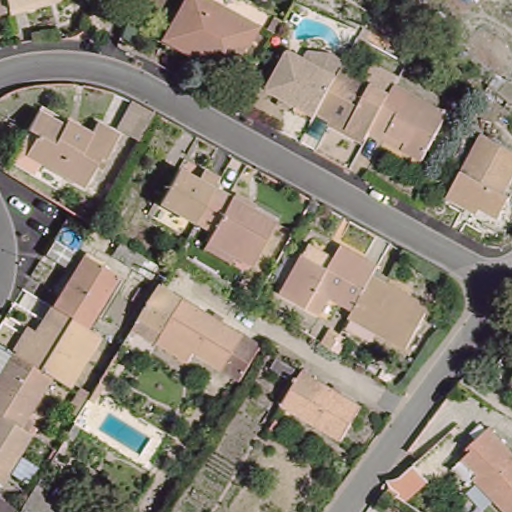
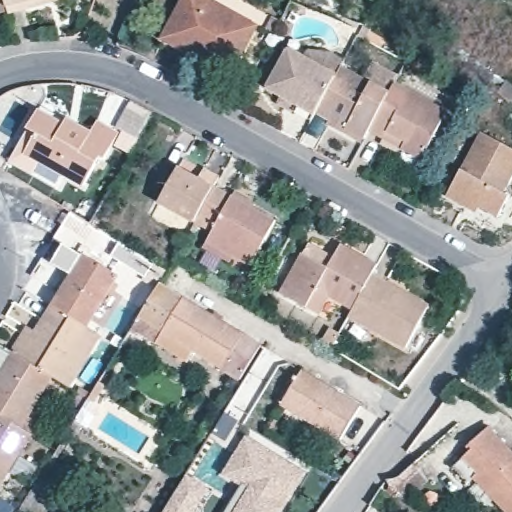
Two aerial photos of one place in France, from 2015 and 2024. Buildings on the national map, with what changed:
unchanged [(0,14),(0,0),(5,0),(8,11),(0,14)]
unchanged [(5,0),(37,0),(37,3),(8,11),(5,0)]
unchanged [(181,0),(215,0),(260,25),(230,77),(160,40),(181,0)]
unchanged [(290,50),(335,73),(317,105),(313,110),(270,88),(290,50)]
unchanged [(372,126),(368,133),(317,105),(335,73),(340,63),(392,91),(372,126)]
unchanged [(424,155),(372,126),(392,91),(397,82),(449,110),(424,155)]
unchanged [(89,132),(96,121),(117,132),(102,160),(97,157),(80,187),(20,152),(31,135),(24,131),(36,112),(62,126),(66,120),(89,132)]
unchanged [(457,203),(439,193),(475,132),(512,155),(512,166),(501,185),(507,191),(495,214),(486,207),(481,218),(457,203)]
unchanged [(197,179),(205,164),(225,175),(217,187),(203,211),(190,231),(149,209),(175,165),(197,179)]
unchanged [(203,211),(217,187),(272,218),(249,256),(215,237),(221,222),(203,211)]
unchanged [(50,306),(41,300),(65,265),(45,252),(63,224),(85,238),(75,253),(117,280),(85,329),(50,306)]
unchanged [(307,312),(275,292),(297,255),(322,268),(337,244),(372,264),(368,270),(346,306),(320,291),(307,312)]
unchanged [(406,292),(430,306),(398,348),(340,315),(346,306),(368,270),(386,280),(381,286),(401,298),(406,292)]
unchanged [(228,375),(185,352),(179,365),(147,350),(157,330),(141,322),(160,286),(250,333),(228,375)]
unchanged [(50,306),(85,329),(97,337),(67,383),(54,375),(19,352),(50,306)]
unchanged [(0,376),(16,351),(19,352),(54,375),(20,426),(0,414),(0,376)]
unchanged [(302,371),(360,408),(343,433),(284,397),(302,371)]
unchanged [(0,414),(20,426),(31,435),(0,479),(0,414)]
unchanged [(455,452),(480,420),(512,445),(512,484),(501,498),(480,482),(473,485),(454,472),(465,458),(455,452)]
new [(226,512),(241,488),(223,475),(247,436),(306,474),(283,512),(226,512)]
new [(211,490),(197,512),(165,512),(188,475),(211,490)]
unchanged [(512,484),(512,507),(501,498),(512,484)]

